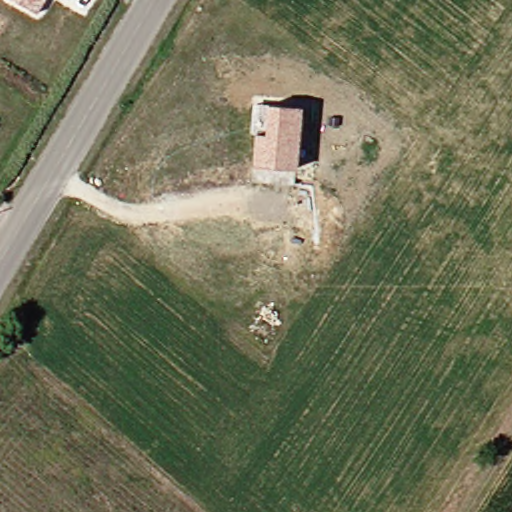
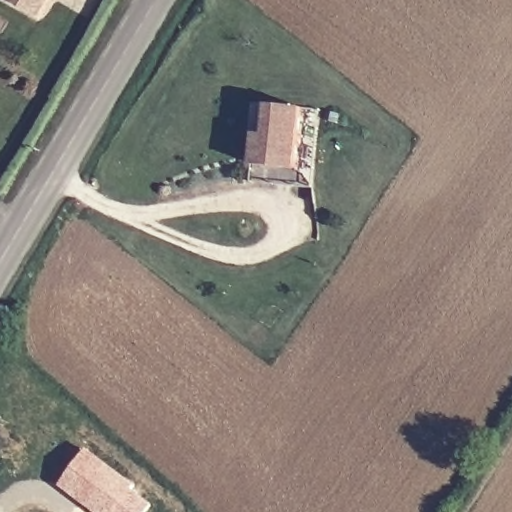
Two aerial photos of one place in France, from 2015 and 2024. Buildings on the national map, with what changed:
unchanged [(36,13),(17,0),(45,0),(36,13)]
unchanged [(255,172),(256,155),(259,123),(261,93),(271,94),(304,97),(299,158),(298,175),(255,172)]
new [(155,503),(148,512),(97,512),(61,484),(89,447),(138,485),(134,488),(155,503)]

